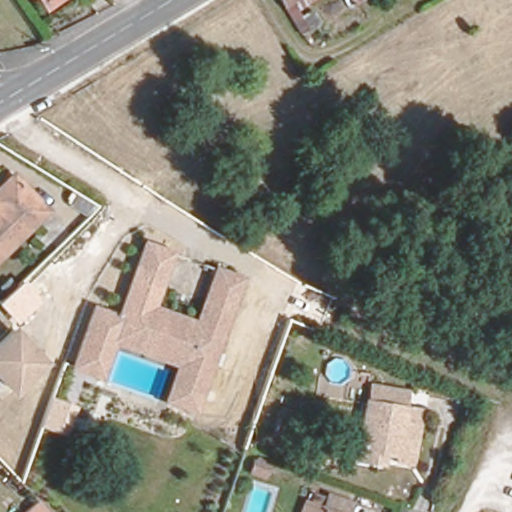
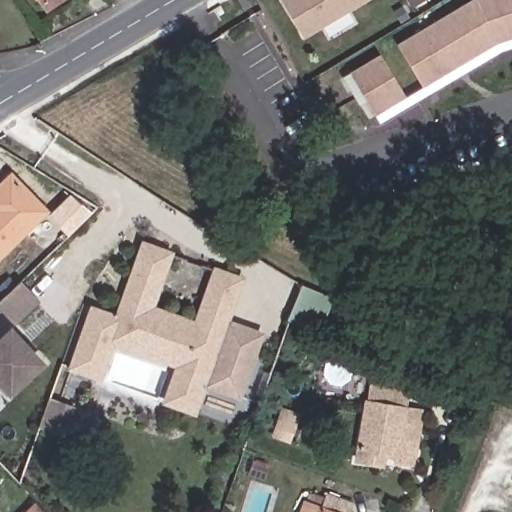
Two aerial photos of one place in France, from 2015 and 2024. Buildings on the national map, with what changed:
unchanged [(39,0),(62,0),(47,10),(39,0)]
new [(368,0),(303,38),(291,18),(280,0),(368,0)]
new [(512,0),(512,38),(498,43),(425,87),(398,44),(474,0),(512,0)]
new [(382,54),(407,97),(377,115),(351,72),(382,54)]
unchanged [(46,214),(0,259),(0,191),(12,179),(46,214)]
unchanged [(97,208),(87,218),(72,207),(79,198),(97,208)]
unchanged [(68,372),(77,343),(89,312),(114,321),(138,251),(163,260),(145,312),(193,329),(209,281),(211,276),(232,284),(230,293),(187,415),(164,406),(176,369),(107,345),(105,353),(95,381),(68,372)]
unchanged [(0,305),(0,303),(21,282),(40,300),(17,321),(0,305)]
new [(335,296),(321,331),(288,320),(301,283),(335,296)]
new [(241,400),(207,388),(231,320),(265,332),(241,400)]
unchanged [(0,386),(0,338),(12,327),(48,366),(12,399),(0,386)]
unchanged [(357,469),(365,411),(367,394),(410,399),(408,417),(422,418),(417,449),(413,473),(396,470),(396,465),(387,464),(386,473),(381,472),(357,469)]
unchanged [(305,500),(322,506),(327,494),(350,502),(346,512),(301,512),(305,500)]
unchanged [(45,512),(25,512),(36,502),(45,512)]

